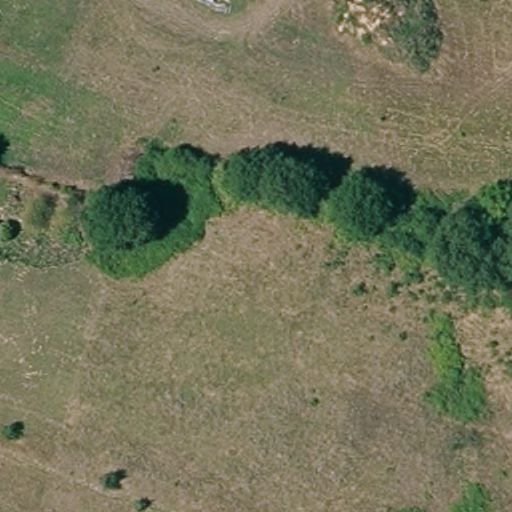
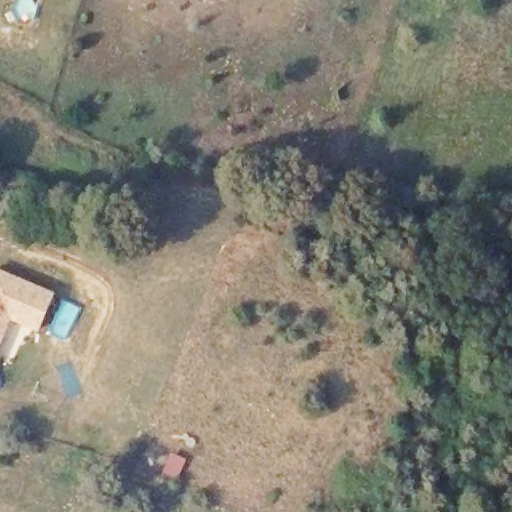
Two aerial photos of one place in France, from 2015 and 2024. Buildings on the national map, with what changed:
new [(39,332),(11,321),(0,346),(0,269),(56,293),(39,332)]

